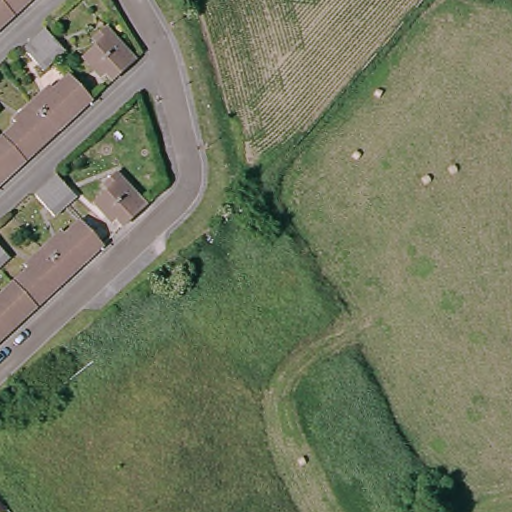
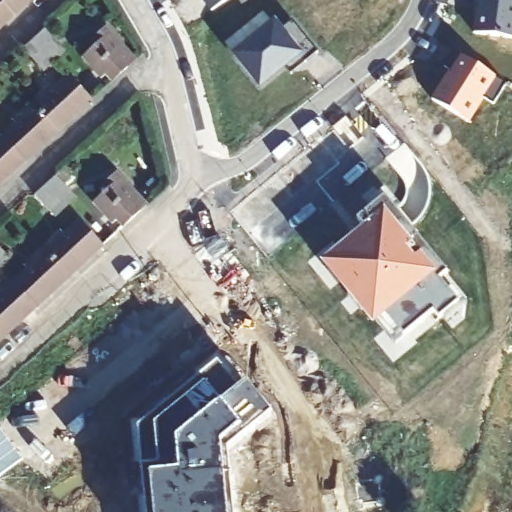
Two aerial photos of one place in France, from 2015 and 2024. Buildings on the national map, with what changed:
unchanged [(7,0),(14,16),(0,29),(0,0),(7,0)]
unchanged [(30,0),(14,16),(7,0),(30,0)]
new [(229,0),(211,11),(203,0),(229,0)]
new [(478,0),(512,0),(512,38),(474,33),(478,0)]
new [(232,55),(275,20),(282,30),(292,23),(317,54),(290,75),(285,69),(259,90),(232,55)]
unchanged [(99,38),(94,31),(105,21),(134,53),(112,75),(102,65),(99,68),(85,51),(99,38)]
unchanged [(43,28),(63,50),(53,60),(42,70),(22,48),(32,38),(43,28)]
new [(432,100),(460,56),(497,80),(505,85),(492,104),(485,100),(470,124),(432,100)]
unchanged [(29,96),(45,79),(51,86),(65,72),(90,100),(60,128),(29,96)]
unchanged [(20,114),(15,109),(29,96),(60,128),(30,158),(2,131),(20,114)]
unchanged [(2,109),(0,110),(0,107),(2,109)]
unchanged [(2,131),(30,158),(0,186),(0,133),(2,131)]
unchanged [(105,179),(100,174),(112,162),(142,194),(120,215),(114,207),(110,211),(93,192),(105,179)]
unchanged [(31,197),(40,188),(51,178),(73,201),(62,211),(52,221),(31,197)]
new [(385,316),(372,326),(320,263),(363,228),(357,221),(383,199),(447,274),(439,281),(457,304),(437,320),(432,313),(403,337),(385,316)]
unchanged [(40,244),(57,230),(62,238),(75,224),(100,250),(72,277),(40,244)]
unchanged [(32,265),(25,258),(40,244),(72,277),(41,306),(17,280),(32,265)]
unchanged [(9,261),(0,270),(0,251),(9,261)]
unchanged [(0,337),(0,296),(17,280),(41,306),(4,341),(0,337)]
unchanged [(0,344),(0,337),(4,341),(0,344)]
new [(143,469),(139,428),(219,364),(239,390),(247,384),(271,414),(225,452),(232,512),(147,512),(143,469)]

